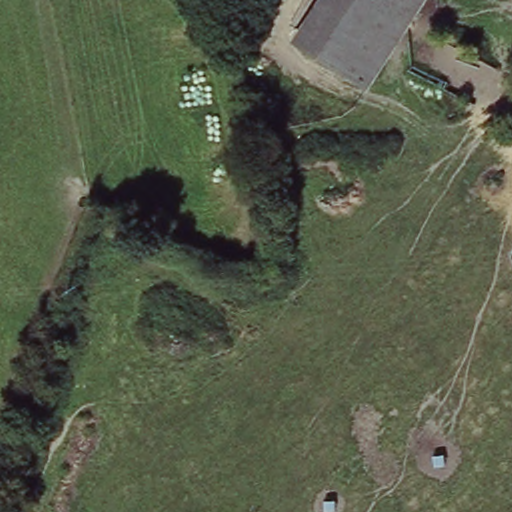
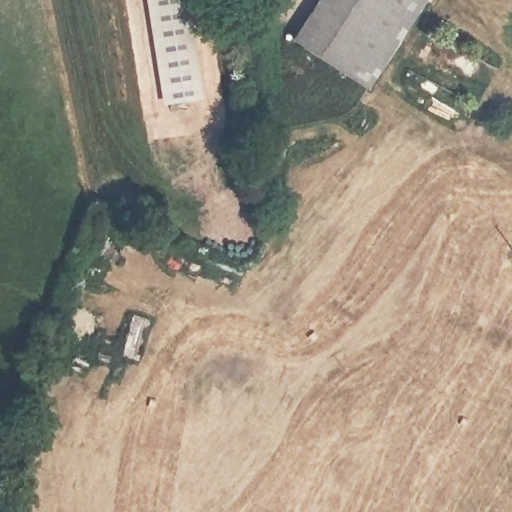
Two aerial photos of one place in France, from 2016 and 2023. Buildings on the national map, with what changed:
new [(162,108),(146,0),(189,0),(205,101),(162,108)]
unchanged [(293,42),(321,0),(428,0),(370,92),(293,42)]

